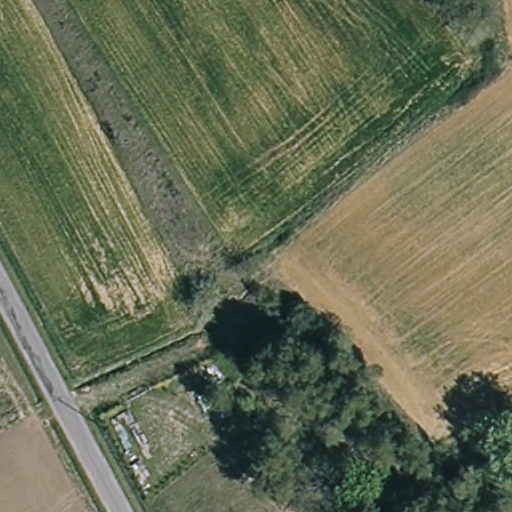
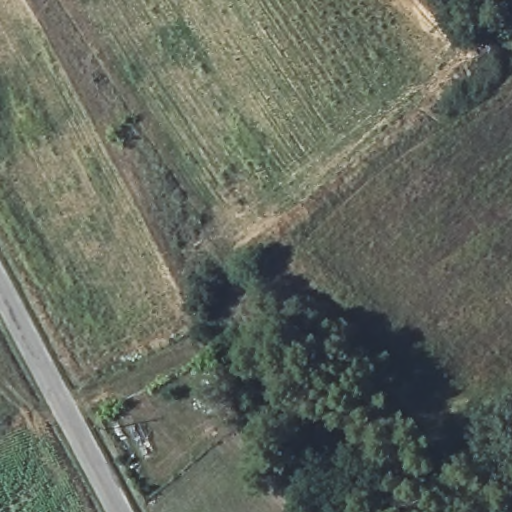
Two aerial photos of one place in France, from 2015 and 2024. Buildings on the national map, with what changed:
[]

